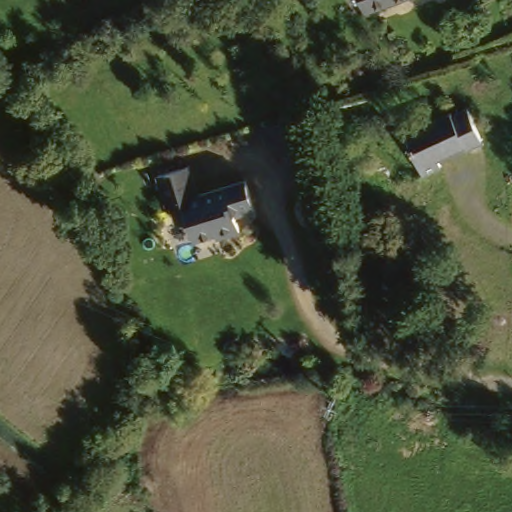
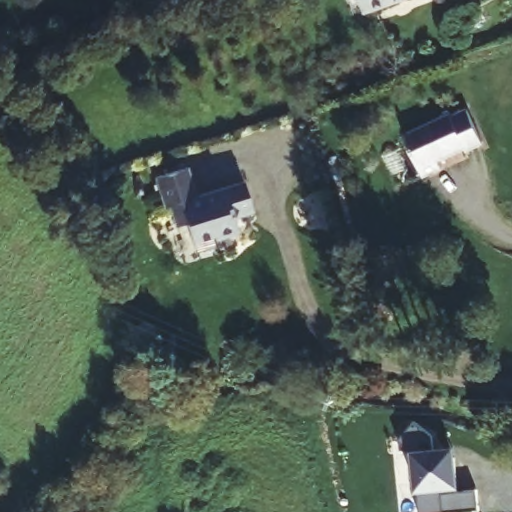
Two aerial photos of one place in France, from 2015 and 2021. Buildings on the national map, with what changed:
unchanged [(349,0),(392,0),(363,8),(351,10),(349,0)]
unchanged [(449,107),(451,111),(469,101),(486,139),(467,148),(465,143),(439,155),(442,164),(424,172),(404,126),(449,107)]
unchanged [(230,224),(234,238),(210,245),(209,240),(187,247),(182,227),(171,230),(166,210),(161,212),(153,181),(184,172),(192,202),(241,188),(247,210),(249,218),(230,224)]
new [(427,431),(429,447),(438,446),(448,445),(449,455),(453,489),(472,487),(474,508),(437,512),(416,512),(409,449),(394,438),(408,418),(427,431)]

